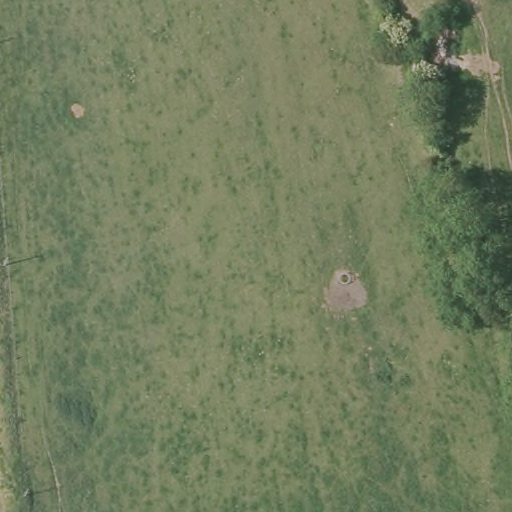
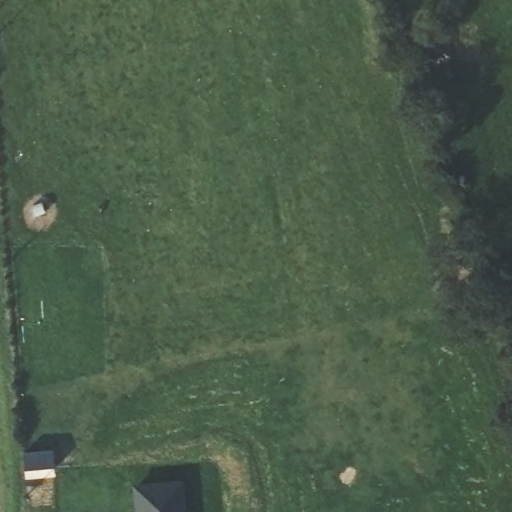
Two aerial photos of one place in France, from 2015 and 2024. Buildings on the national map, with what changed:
new [(179,485),(182,512),(137,512),(136,488),(179,485)]

